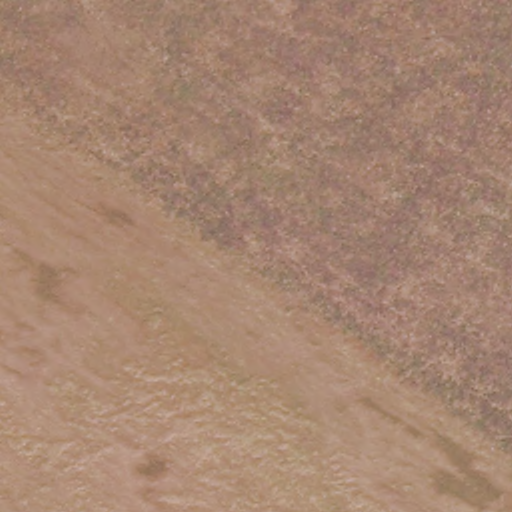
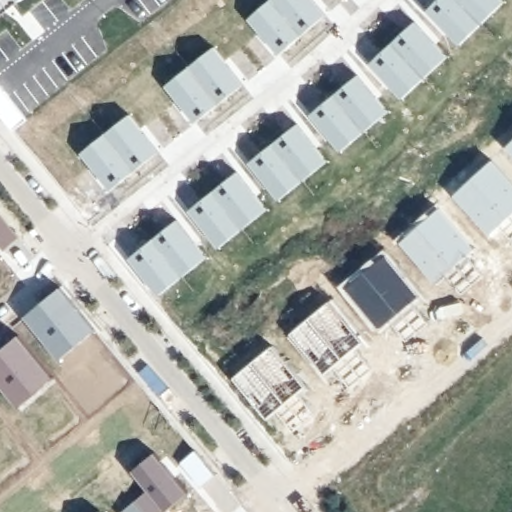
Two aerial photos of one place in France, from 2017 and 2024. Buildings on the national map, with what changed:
new [(0,16),(0,0),(18,0),(0,16)]
new [(327,14),(280,56),(248,20),(271,0),(316,0),(327,14)]
new [(460,45),(427,10),(437,0),(506,0),(460,45)]
new [(450,55),(403,99),(371,63),(416,21),(450,55)]
new [(245,82),(197,122),(166,86),(216,45),(245,82)]
new [(390,111),(342,152),(312,115),(360,74),(390,111)]
new [(160,151),(112,190),(81,152),(130,114),(160,151)]
new [(329,161),(280,199),(250,162),(298,124),(329,161)]
new [(506,146),(512,141),(512,152),(506,146)]
new [(512,179),(512,240),(500,226),(490,235),(454,195),(494,160),(512,179)]
new [(270,208),(220,247),(190,210),(238,171),(270,208)]
new [(401,244),(440,209),(475,250),(467,256),(484,274),(463,292),(448,272),(436,282),(401,244)]
new [(0,213),(20,237),(5,249),(0,243),(0,213)]
new [(130,258),(180,219),(209,257),(160,295),(130,258)]
new [(347,286),(385,255),(420,297),(413,302),(430,322),(407,340),(392,319),(381,327),(347,286)]
new [(25,317),(62,287),(97,328),(60,358),(25,317)]
new [(350,386),(335,365),(326,372),(292,332),(331,301),(364,342),(356,348),(372,367),(350,386)]
new [(0,352),(20,335),(55,377),(17,407),(0,385),(0,352)]
new [(293,431),(278,409),(267,418),(235,378),(273,345),(307,387),(300,393),(315,412),(293,431)]
new [(181,462),(196,449),(217,476),(201,487),(181,462)]
new [(149,491),(133,471),(155,453),(189,493),(166,512),(122,512),(135,502),(149,491)]
new [(101,512),(99,512),(100,511),(101,512)]

